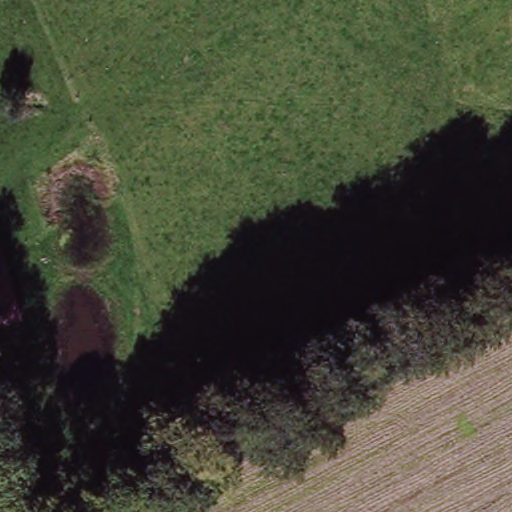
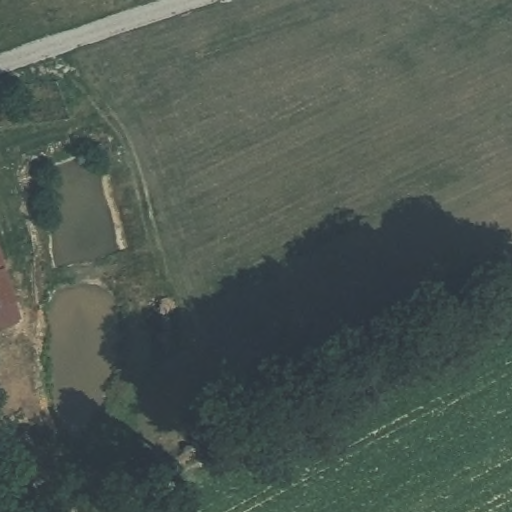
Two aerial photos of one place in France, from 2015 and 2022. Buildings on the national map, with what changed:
unchanged [(20,324),(0,330),(0,258),(20,324)]

